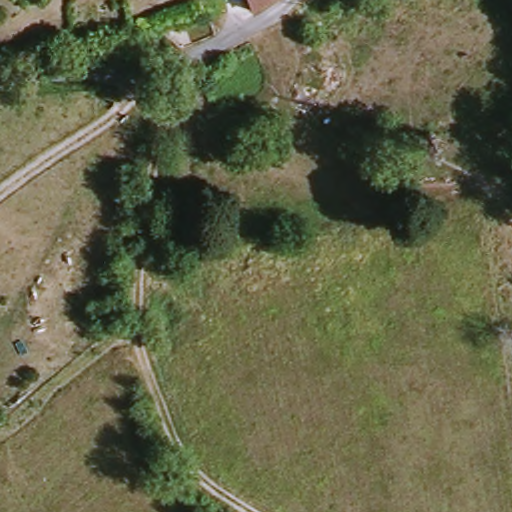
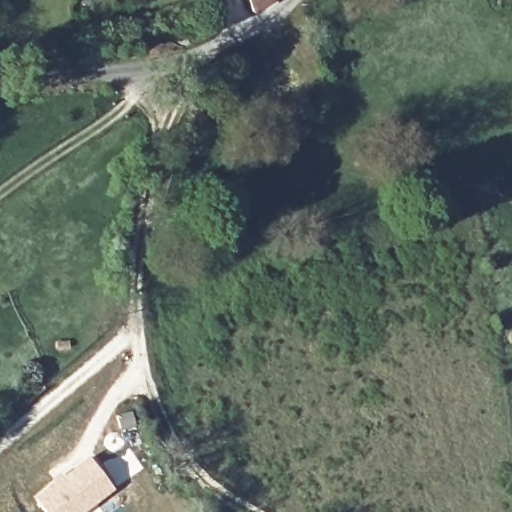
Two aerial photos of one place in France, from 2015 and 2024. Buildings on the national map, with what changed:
unchanged [(256,7),(252,0),(267,0),(256,7)]
new [(99,465),(119,454),(131,476),(85,512),(46,512),(33,496),(90,454),(99,465)]

